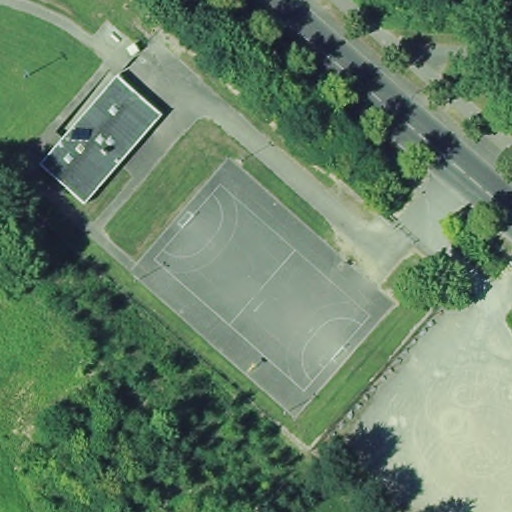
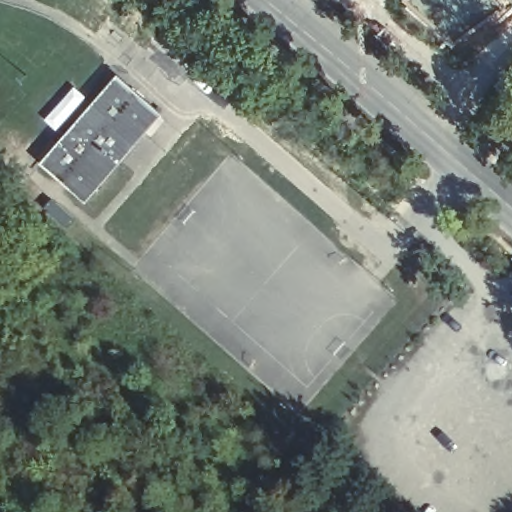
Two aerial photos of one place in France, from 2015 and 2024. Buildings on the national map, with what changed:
unchanged [(122,75),(142,92),(140,94),(146,99),(147,97),(167,113),(91,201),(72,184),(74,182),(68,177),(66,179),(47,162),(122,75)]

